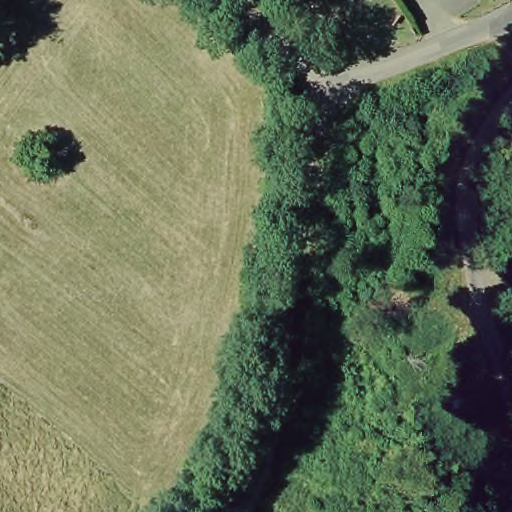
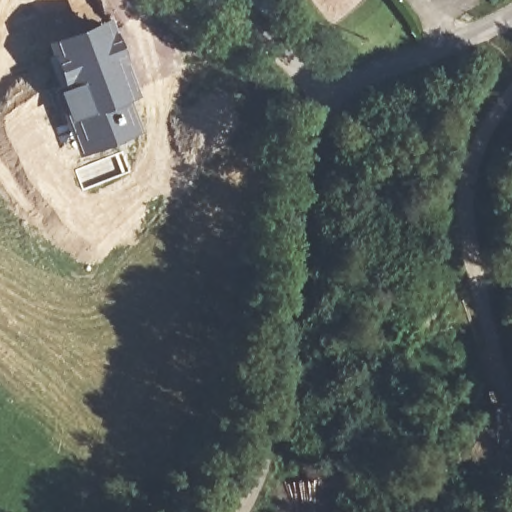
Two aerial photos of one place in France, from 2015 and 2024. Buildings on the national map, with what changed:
new [(272,0),(275,2),(270,9),(265,16),(245,0),(272,0)]
new [(109,16),(138,97),(130,100),(142,131),(76,155),(52,88),(58,86),(42,40),(109,16)]

